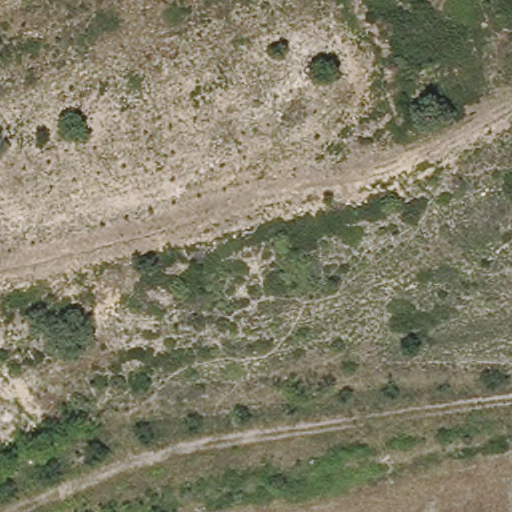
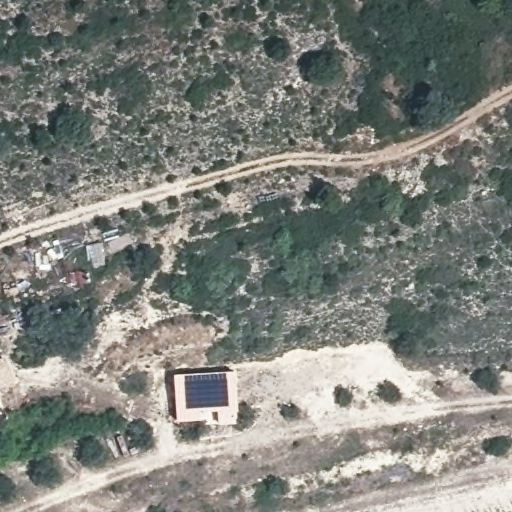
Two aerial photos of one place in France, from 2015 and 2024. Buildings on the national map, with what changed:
new [(235,370),(236,423),(175,421),(172,373),(235,370)]

